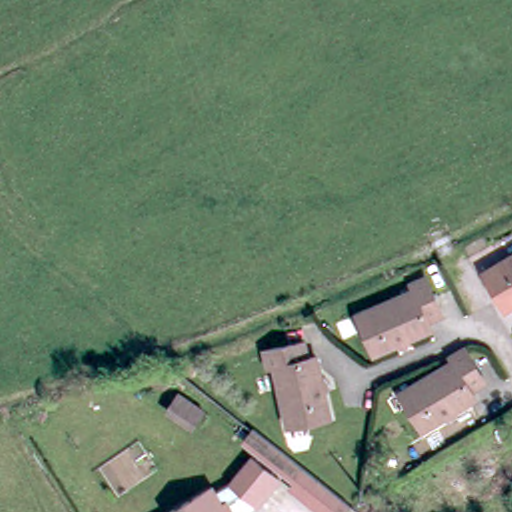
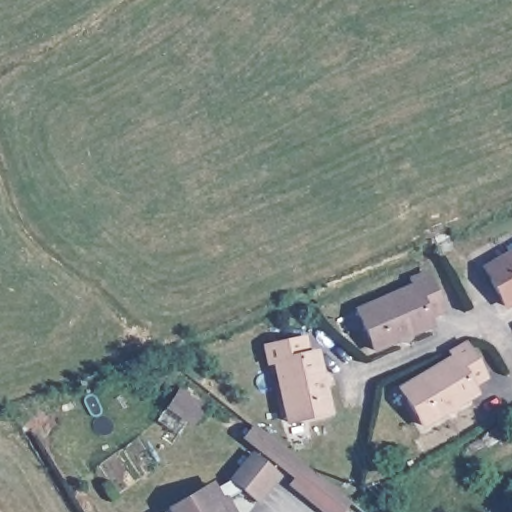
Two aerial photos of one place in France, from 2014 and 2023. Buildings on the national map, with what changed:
unchanged [(487,264),(512,250),(512,299),(508,301),(487,264)]
unchanged [(377,351),(360,311),(416,287),(414,281),(429,274),(445,312),(430,319),(434,327),(377,351)]
unchanged [(268,343),(307,334),(311,351),(320,348),(334,409),(290,419),(278,359),(271,361),(268,343)]
unchanged [(426,422),(404,384),(455,353),(452,349),(467,338),(488,373),(474,382),(479,390),(426,422)]
unchanged [(167,403),(176,388),(202,406),(193,421),(167,403)]
unchanged [(257,505),(241,493),(219,505),(223,512),(169,512),(210,488),(213,493),(229,484),(252,457),(279,479),(257,505)]
unchanged [(301,498),(288,488),(303,470),(316,480),(301,498)]

